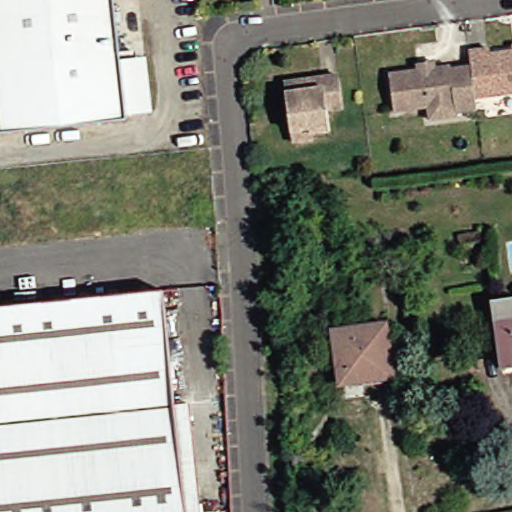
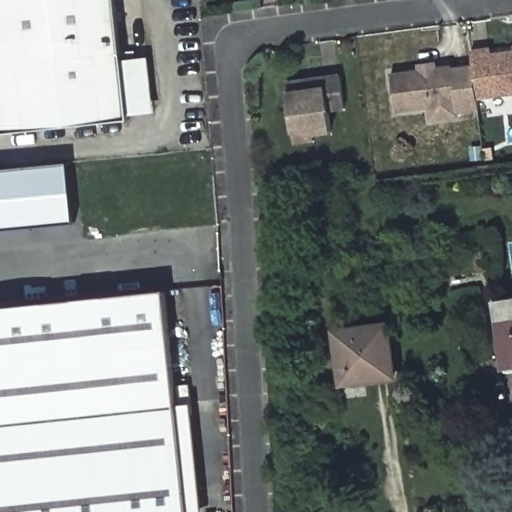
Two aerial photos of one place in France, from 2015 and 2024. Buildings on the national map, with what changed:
unchanged [(110,0),(116,62),(123,126),(0,137),(0,0),(110,0)]
unchanged [(512,52),(512,90),(485,95),(480,62),(478,51),(497,48),(498,55),(512,52)]
unchanged [(438,107),(405,114),(398,75),(430,70),(443,68),(480,62),(485,95),(486,110),(466,113),(467,118),(441,122),(438,107)]
unchanged [(305,140),(302,125),(295,79),(317,75),(333,72),(348,70),(353,108),(336,111),(339,129),(323,131),(324,136),(305,140)]
new [(67,166),(72,224),(0,231),(0,172),(67,166)]
unchanged [(171,290),(181,406),(191,512),(0,512),(0,305),(171,290)]
unchanged [(512,308),(512,337),(508,308),(512,308)]
unchanged [(345,330),(396,322),(405,375),(353,381),(345,330)]
unchanged [(195,405),(205,512),(191,512),(181,406),(195,405)]
unchanged [(304,467),(293,467),(291,437),(302,436),(304,467)]

